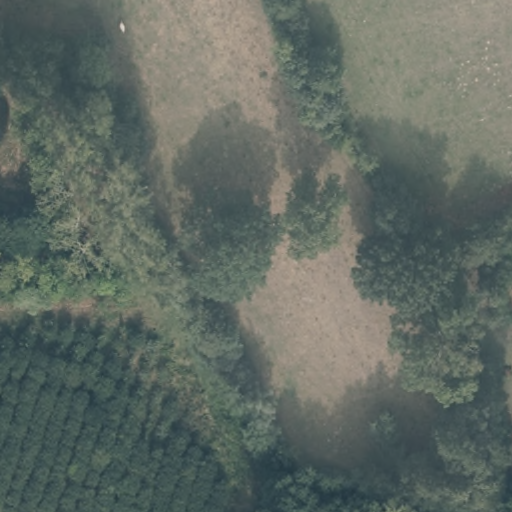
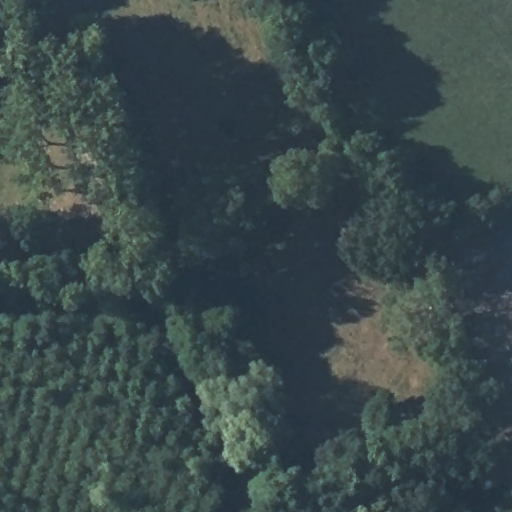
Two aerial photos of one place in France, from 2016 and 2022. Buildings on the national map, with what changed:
[]

